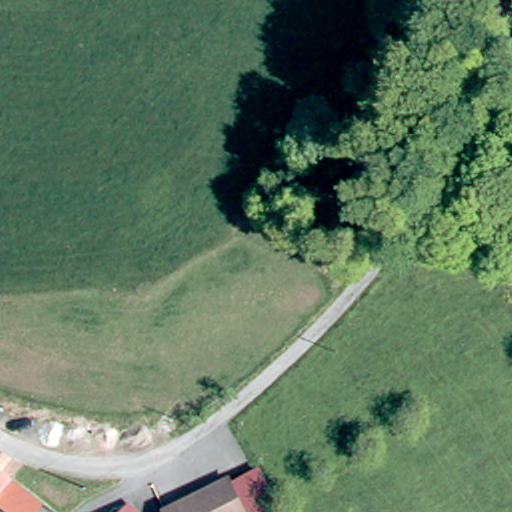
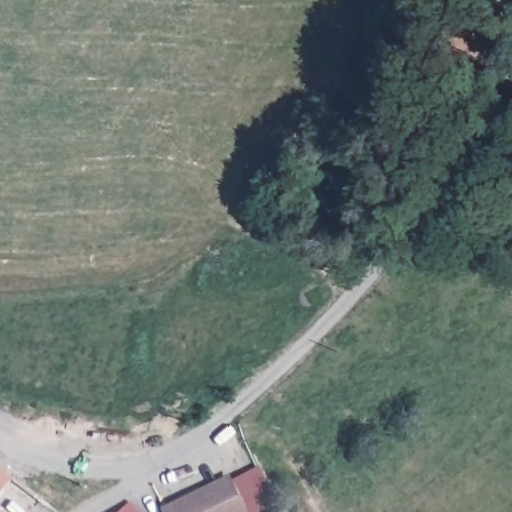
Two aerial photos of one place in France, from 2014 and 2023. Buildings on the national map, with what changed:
unchanged [(260,467),(279,503),(262,512),(244,512),(233,490),(230,483),(260,467)]
unchanged [(0,503),(0,476),(12,486),(0,503)]
unchanged [(6,494),(12,486),(17,479),(43,502),(35,512),(11,512),(0,503),(6,494)]
unchanged [(230,483),(244,512),(172,512),(230,483)]

